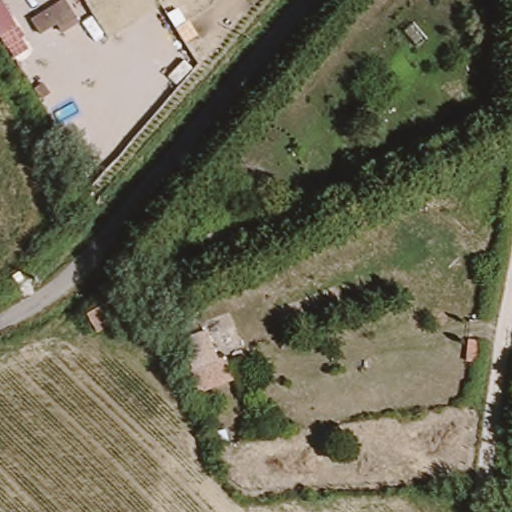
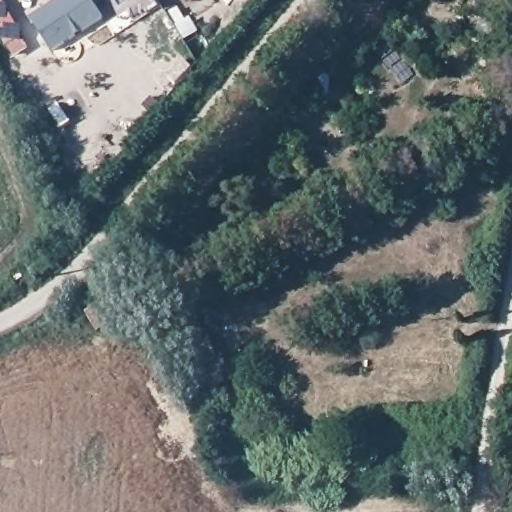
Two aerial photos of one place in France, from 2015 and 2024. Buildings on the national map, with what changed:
new [(15,57),(0,34),(0,0),(1,0),(32,46),(15,57)]
new [(52,52),(30,17),(57,0),(93,0),(105,18),(52,52)]
unchanged [(85,315),(108,302),(118,320),(93,333),(85,315)]
unchanged [(204,332),(213,358),(221,356),(229,382),(197,394),(179,341),(204,332)]

